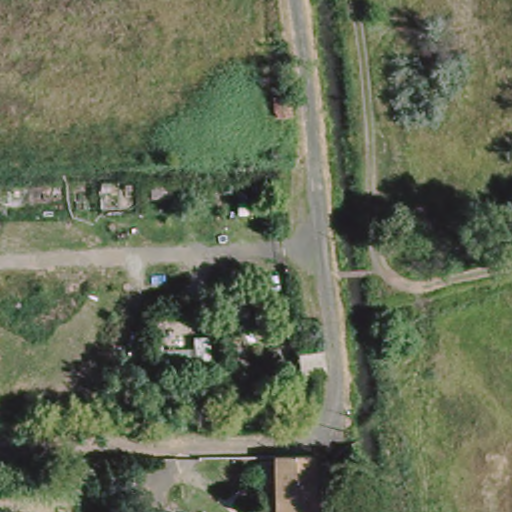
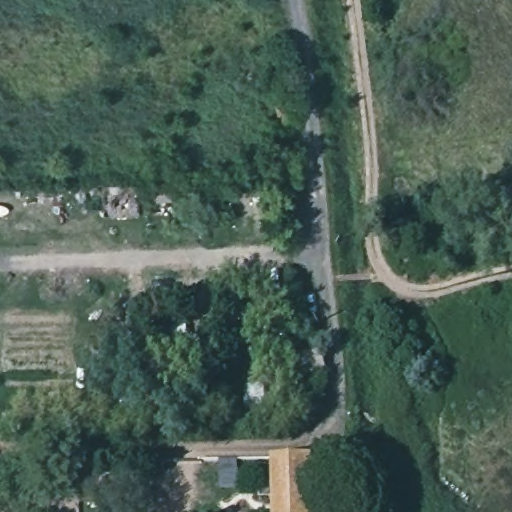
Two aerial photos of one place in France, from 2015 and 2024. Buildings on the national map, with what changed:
unchanged [(289,120),(274,121),(273,101),(287,99),(289,120)]
unchanged [(395,239),(384,240),(383,227),(395,226),(395,239)]
unchanged [(330,376),(309,378),(307,357),(328,355),(330,376)]
unchanged [(277,512),(275,455),(314,454),(315,512),(277,512)]

